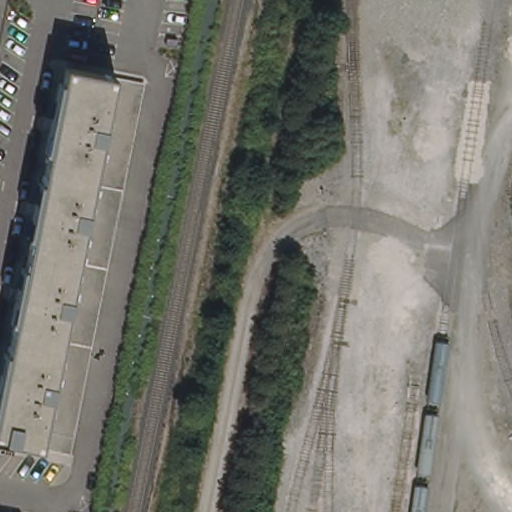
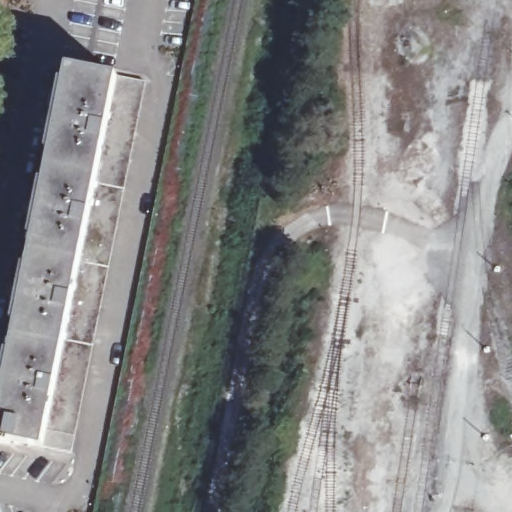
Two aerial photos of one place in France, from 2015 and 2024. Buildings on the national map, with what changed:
unchanged [(0,440),(0,390),(66,68),(117,75),(46,448),(0,440)]

